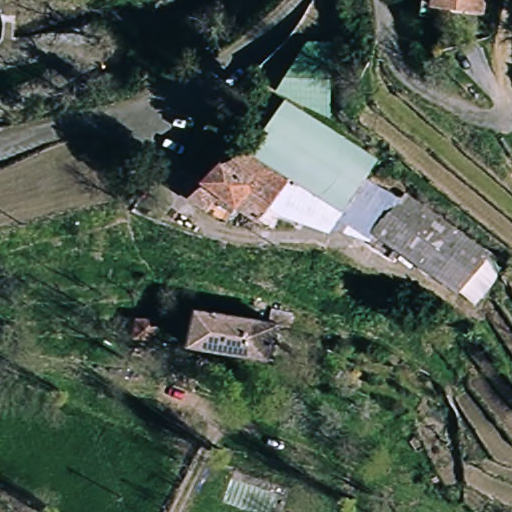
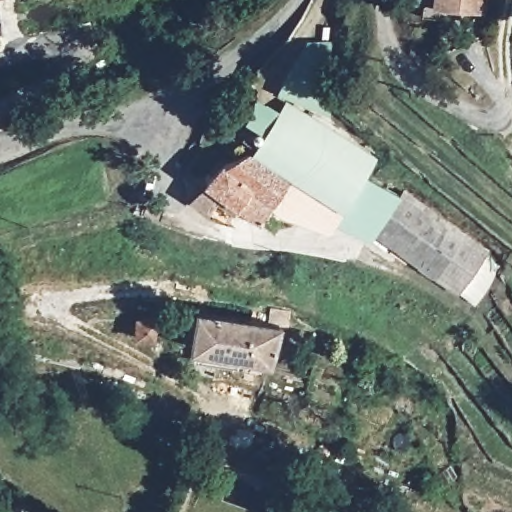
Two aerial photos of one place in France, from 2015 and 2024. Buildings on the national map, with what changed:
unchanged [(418,15),(421,0),(436,0),(435,5),(446,8),(442,20),(418,15)]
unchanged [(436,0),(484,0),(481,14),(446,8),(435,5),(436,0)]
unchanged [(297,101),(279,91),(307,42),(336,43),(333,126),(297,101)]
unchanged [(464,301),(346,220),(329,245),(272,206),(294,174),(262,153),(297,101),(384,161),(376,174),(496,256),(464,301)]
unchanged [(224,165),(262,153),(294,174),(272,206),(257,226),(201,185),(224,165)]
unchanged [(189,351),(191,341),(196,312),(248,318),(249,307),(268,309),(269,303),(289,305),(287,323),(276,321),(274,340),(286,342),(283,362),(193,352),(189,351)]
unchanged [(157,338),(136,336),(138,315),(158,318),(157,338)]

